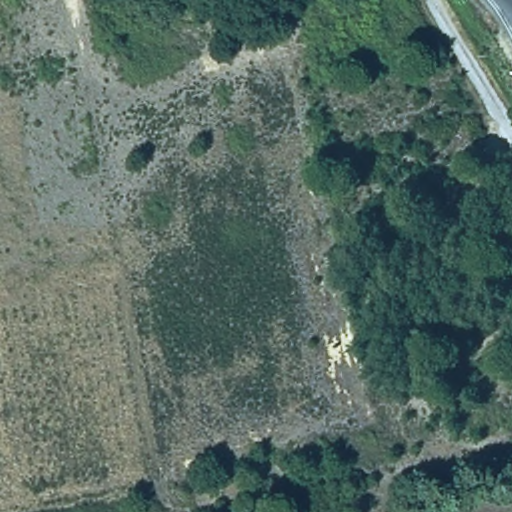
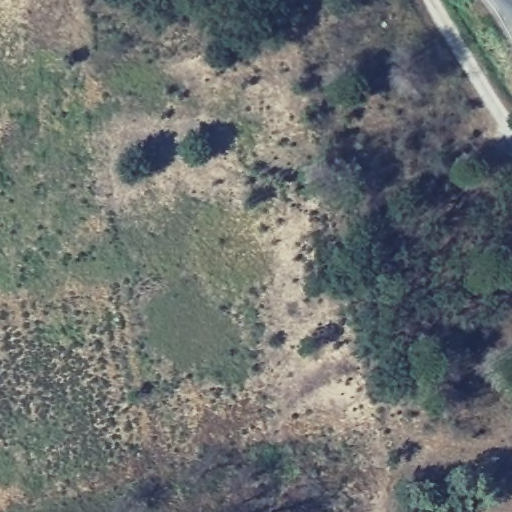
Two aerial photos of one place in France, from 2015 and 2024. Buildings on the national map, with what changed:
[]

